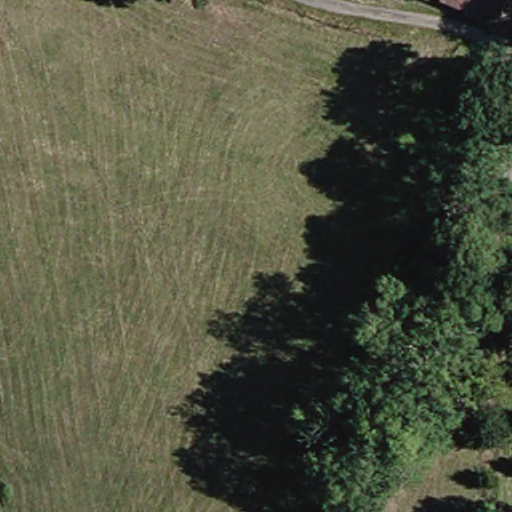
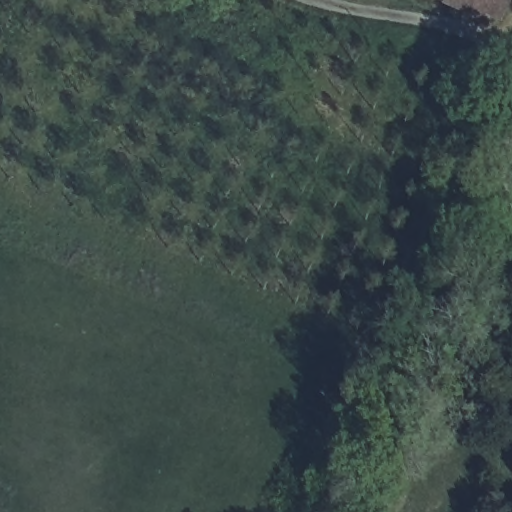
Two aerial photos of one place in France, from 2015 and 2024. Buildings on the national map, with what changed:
unchanged [(502,17),(486,10),(482,15),(467,7),(452,0),(511,0),(502,17)]

